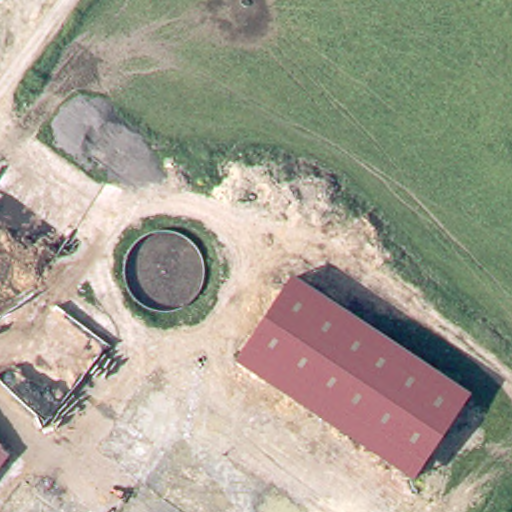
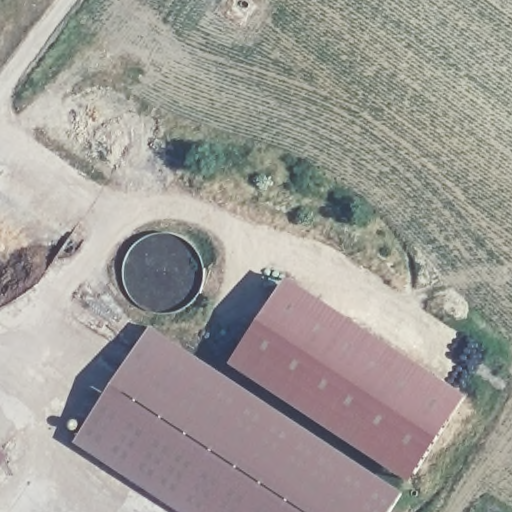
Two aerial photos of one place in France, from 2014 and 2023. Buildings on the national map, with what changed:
unchanged [(290,275),(471,394),(413,479),(235,363),(290,275)]
new [(389,512),(178,512),(72,443),(150,325),(402,492),(389,512)]
unchanged [(0,472),(0,438),(16,450),(0,472)]

